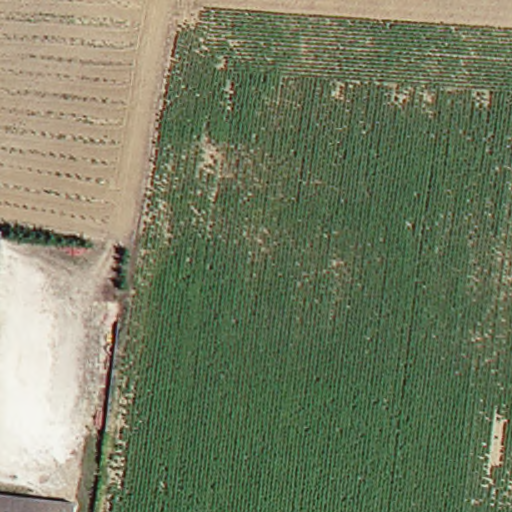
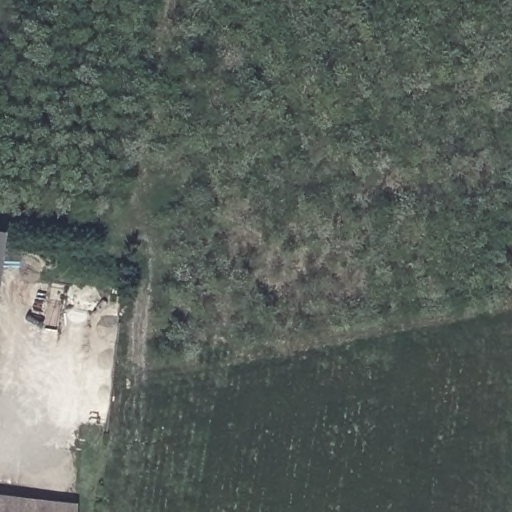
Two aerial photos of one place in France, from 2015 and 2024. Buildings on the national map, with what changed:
unchanged [(33,496),(31,512),(0,512),(0,492),(33,496)]
unchanged [(54,498),(52,512),(31,512),(33,496),(54,498)]
unchanged [(54,498),(73,500),(71,512),(52,512),(54,498)]

